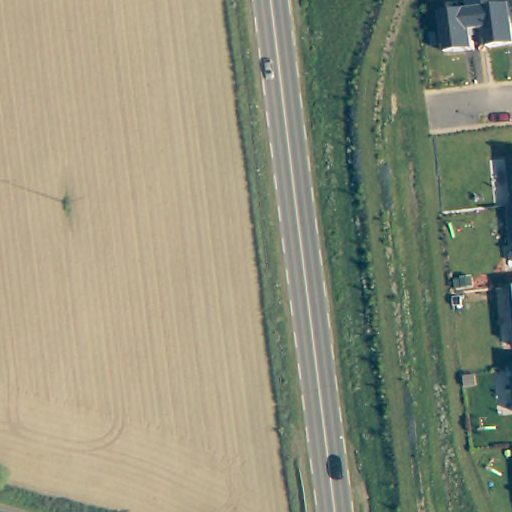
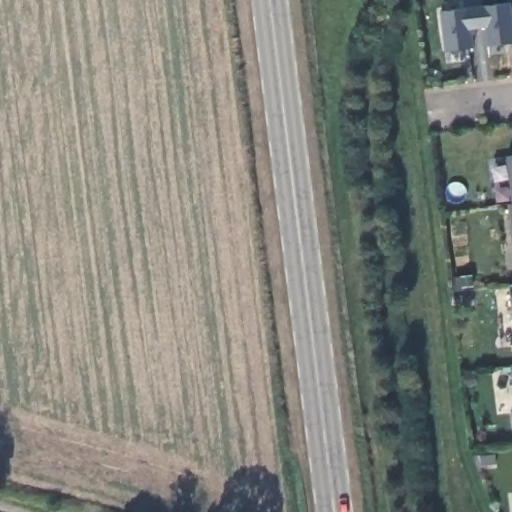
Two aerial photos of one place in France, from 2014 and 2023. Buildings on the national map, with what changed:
unchanged [(466,0),(482,0),(483,6),(509,3),(509,0),(512,0),(512,42),(487,46),(484,29),(472,31),(474,48),(444,51),(440,11),(467,9),(466,0)]
unchanged [(512,157),(512,199),(508,157),(512,157)]
unchanged [(512,245),(507,204),(512,204),(512,244),(512,245)]

